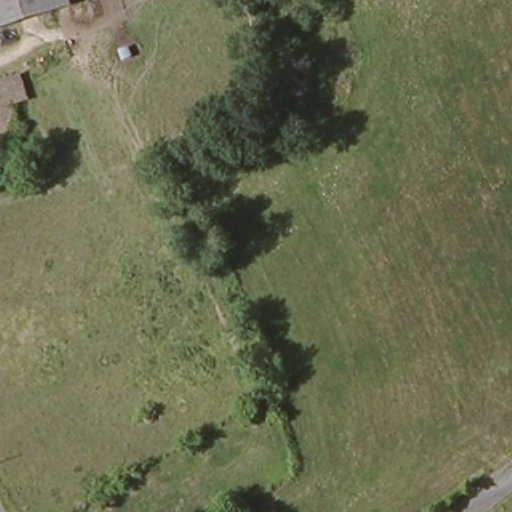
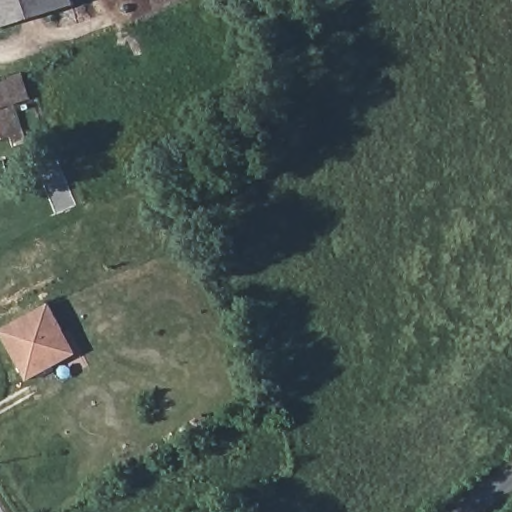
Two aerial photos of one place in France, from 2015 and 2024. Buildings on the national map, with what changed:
unchanged [(69,0),(71,6),(0,29),(0,0),(69,0)]
unchanged [(0,139),(0,80),(15,77),(28,75),(34,99),(20,103),(29,147),(19,150),(15,136),(0,139)]
new [(28,382),(0,331),(0,329),(50,303),(77,354),(28,382)]

